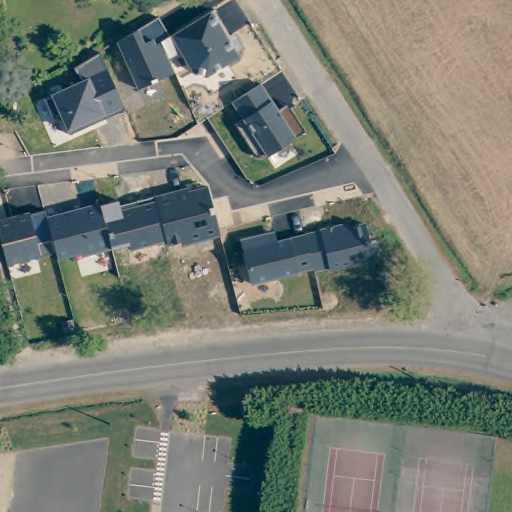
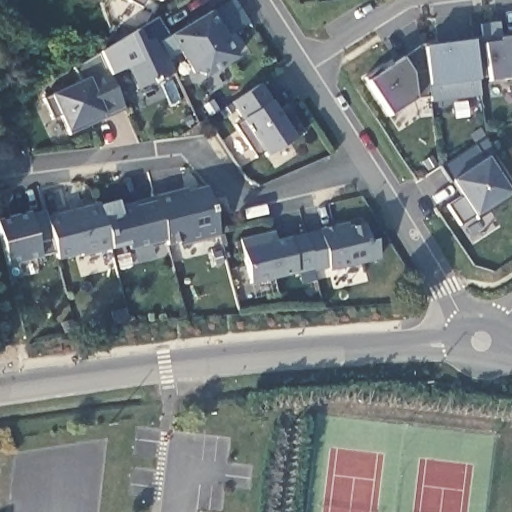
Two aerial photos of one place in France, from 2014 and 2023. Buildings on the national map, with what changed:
new [(144,0),(141,6),(129,0),(144,0)]
new [(158,0),(161,0),(161,1),(158,0)]
unchanged [(115,43),(139,30),(158,20),(169,37),(172,35),(213,12),(228,36),(234,34),(242,47),(236,51),(240,57),(206,76),(193,74),(180,52),(166,59),(174,74),(137,91),(115,43)]
new [(501,38),(512,37),(512,78),(489,82),(484,44),(481,26),(499,22),(501,38)]
new [(364,77),(382,66),(386,70),(403,60),(424,49),(473,41),(477,81),(479,96),(430,102),(429,95),(412,99),(389,115),(367,82),(364,77)]
unchanged [(45,100),(51,97),(50,95),(83,80),(76,67),(99,52),(124,109),(105,117),(104,115),(66,132),(58,116),(53,119),(45,100)]
unchanged [(244,120),(233,102),(261,85),(279,110),(286,106),(303,133),(295,138),(267,156),(265,151),(256,156),(237,125),(244,120)]
new [(463,199),(451,181),(441,166),(475,146),(483,160),(487,157),(509,194),(475,216),(459,225),(448,206),(463,199)]
unchanged [(0,234),(0,221),(30,213),(31,216),(46,212),(47,216),(99,203),(100,205),(119,200),(121,207),(137,202),(137,200),(155,196),(188,188),(189,191),(208,187),(220,236),(182,247),(181,242),(167,247),(166,240),(130,250),(129,245),(112,250),(82,256),(81,254),(58,260),(57,253),(9,265),(0,234)]
unchanged [(274,231),(277,239),(289,236),(320,230),(319,228),(348,222),(349,227),(364,224),(368,245),(377,242),(379,259),(330,270),(315,273),(314,268),(297,273),(251,285),(240,239),(274,231)]

